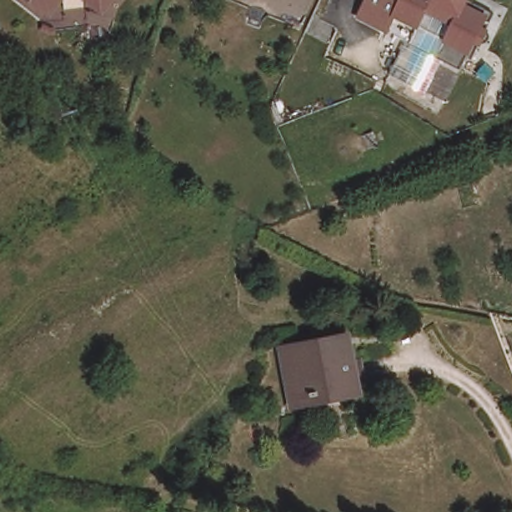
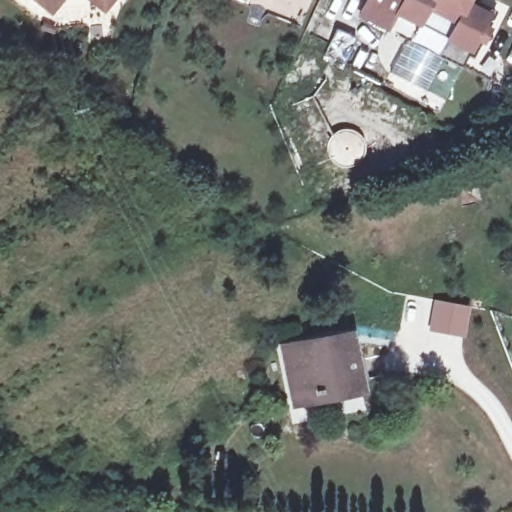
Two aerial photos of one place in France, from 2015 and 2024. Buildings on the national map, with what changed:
unchanged [(68,0),(56,11),(40,0),(68,0)]
unchanged [(120,0),(108,13),(96,0),(120,0)]
unchanged [(469,59),(443,50),(448,39),(406,22),(399,31),(367,9),(371,0),(495,0),(499,1),(469,59)]
new [(429,331),(434,298),(471,306),(464,338),(429,331)]
unchanged [(300,404),(294,372),(289,347),(301,345),(342,336),(354,334),(356,347),(364,384),(366,391),(323,400),(300,404)]

